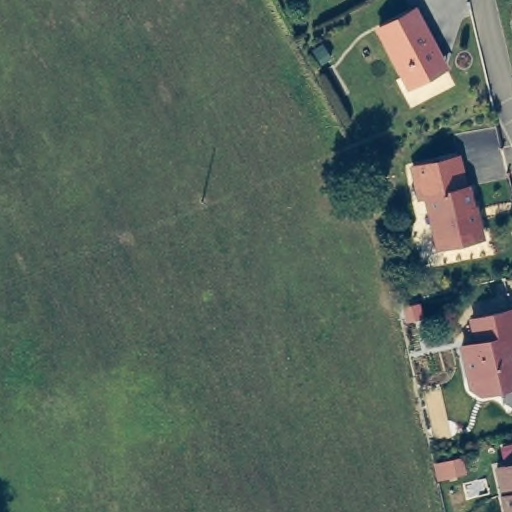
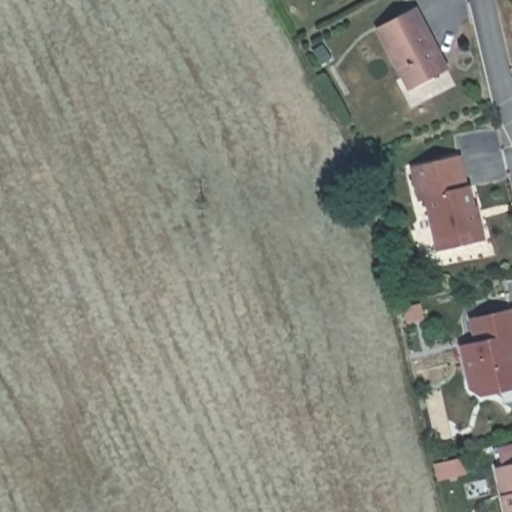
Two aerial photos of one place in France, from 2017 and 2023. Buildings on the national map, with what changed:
unchanged [(435,73),(406,89),(375,34),(411,15),(429,47),(442,69),(435,73)]
unchanged [(480,240),(438,250),(424,203),(416,201),(411,169),(453,159),(480,240)]
unchanged [(473,387),(466,346),(478,343),(475,319),(512,309),(512,388),(485,393),(473,387)]
unchanged [(464,457),(467,473),(450,477),(446,462),(464,457)]
unchanged [(512,461),(512,512),(511,512),(499,464),(512,461)]

